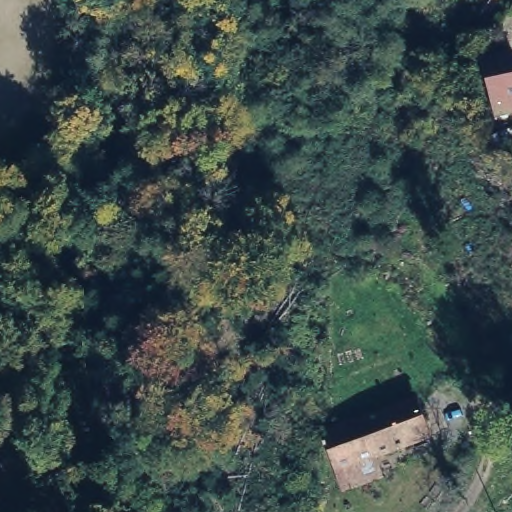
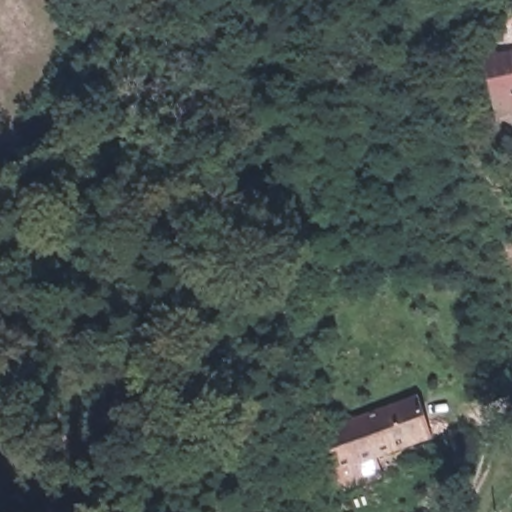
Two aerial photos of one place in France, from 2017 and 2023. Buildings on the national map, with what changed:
unchanged [(512,119),(490,123),(475,66),(508,55),(512,73),(512,119)]
unchanged [(339,486),(331,466),(319,425),(404,399),(417,433),(414,437),(362,455),(368,473),(339,486)]

